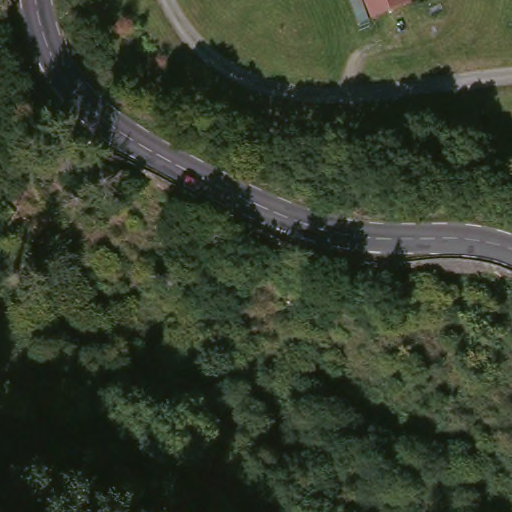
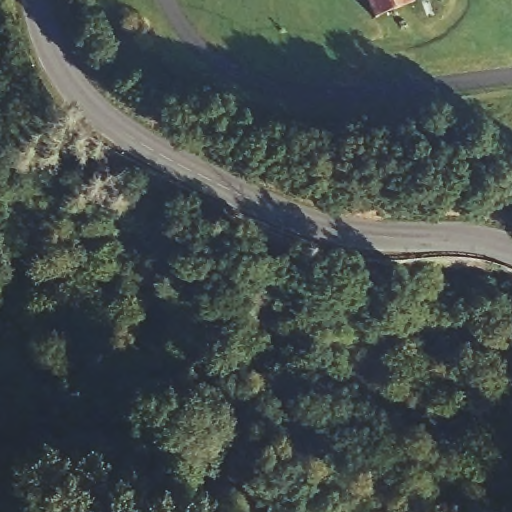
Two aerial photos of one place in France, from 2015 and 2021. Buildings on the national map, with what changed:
unchanged [(382,18),(375,0),(400,0),(404,10),(382,18)]

